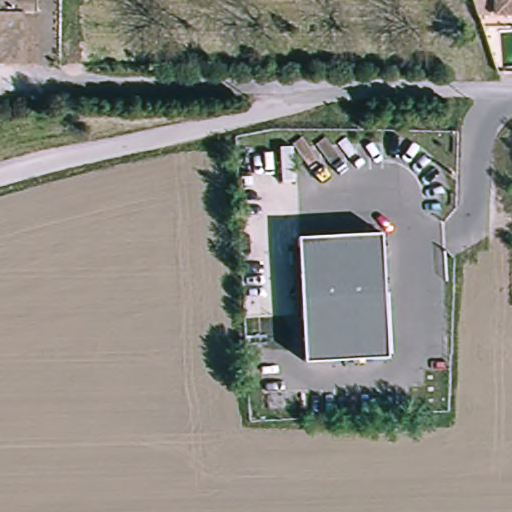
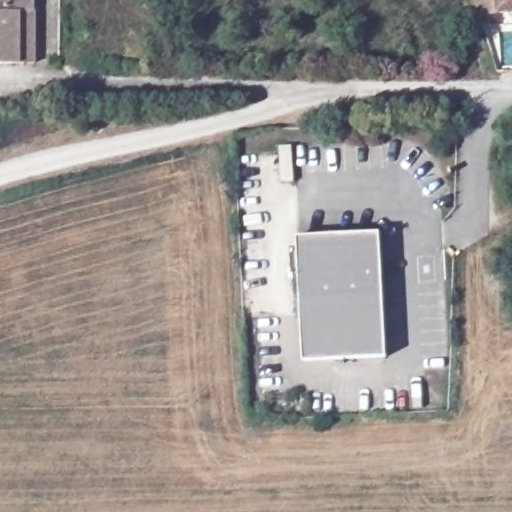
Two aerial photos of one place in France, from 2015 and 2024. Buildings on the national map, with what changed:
unchanged [(38,0),(38,14),(37,61),(27,61),(0,61),(0,0),(38,0)]
unchanged [(476,0),(512,0),(512,7),(478,8),(476,0)]
unchanged [(390,360),(306,360),(306,235),(390,235),(390,360)]

